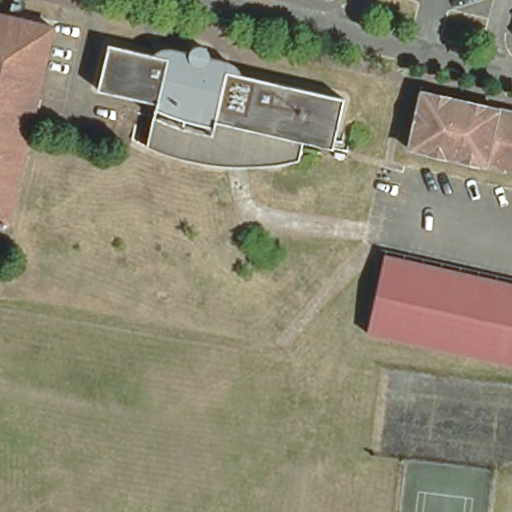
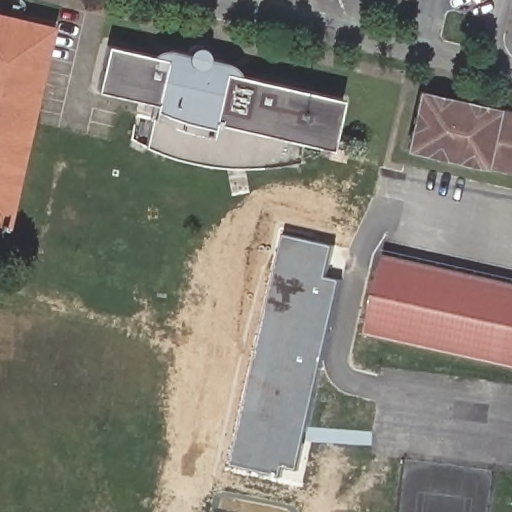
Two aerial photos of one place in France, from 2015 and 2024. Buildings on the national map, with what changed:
unchanged [(50,25),(5,219),(0,218),(0,13),(50,25)]
unchanged [(106,39),(171,52),(174,42),(189,46),(191,42),(194,40),(197,39),(201,40),(204,41),(206,44),(207,46),(208,49),(222,52),(220,62),(341,92),(329,142),(298,136),(295,152),(282,154),(245,158),(217,151),(215,159),(185,153),(145,141),(154,95),(97,83),(106,39)]
unchanged [(512,171),(406,147),(420,92),(512,113),(512,171)]
new [(297,471),(284,468),(281,477),(229,466),(283,235),(332,246),(326,277),(340,281),(297,471)]
unchanged [(512,364),(369,333),(387,255),(512,283),(512,364)]

